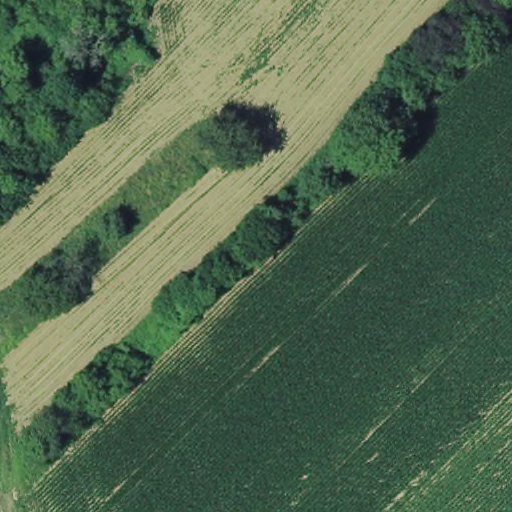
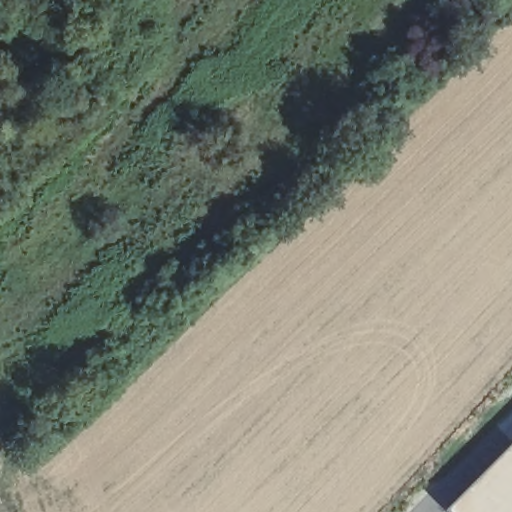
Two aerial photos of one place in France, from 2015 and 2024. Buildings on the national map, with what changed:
new [(512,443),(512,512),(456,512),(449,505),(512,443)]

